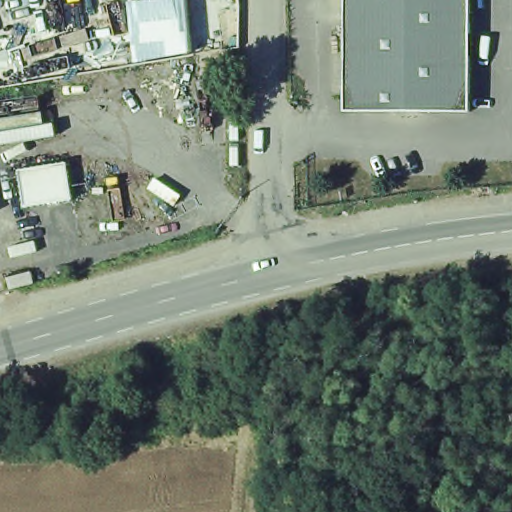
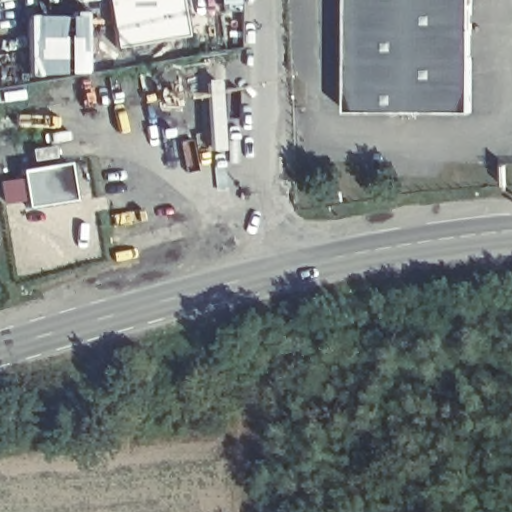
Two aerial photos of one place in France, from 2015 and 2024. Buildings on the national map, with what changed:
unchanged [(187,0),(194,52),(137,64),(130,2),(156,0),(187,0)]
unchanged [(348,110),(348,0),(473,0),(472,110),(348,110)]
new [(27,14),(86,11),(87,75),(26,79),(27,14)]
unchanged [(68,161),(74,197),(27,205),(21,169),(68,161)]

